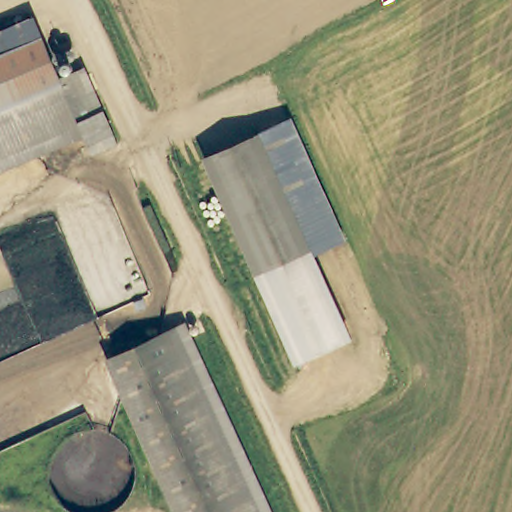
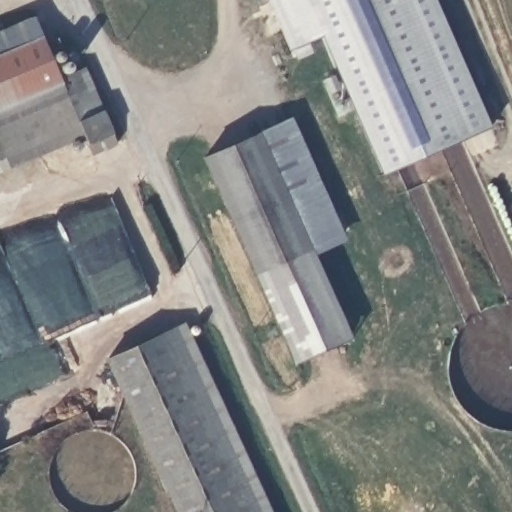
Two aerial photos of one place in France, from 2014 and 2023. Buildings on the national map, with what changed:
new [(384,176),(320,36),(288,50),(267,0),(436,0),(492,127),(384,176)]
unchanged [(60,80),(61,83),(0,110),(0,32),(32,19),(60,80)]
unchanged [(85,70),(117,144),(92,154),(84,134),(69,101),(61,83),(60,80),(84,68),(85,70)]
unchanged [(69,101),(84,134),(0,171),(0,110),(61,83),(69,101)]
unchanged [(288,118),(342,232),(312,247),(312,252),(351,336),(297,361),(205,156),(288,118)]
unchanged [(253,512),(184,512),(112,355),(169,329),(253,512)]

